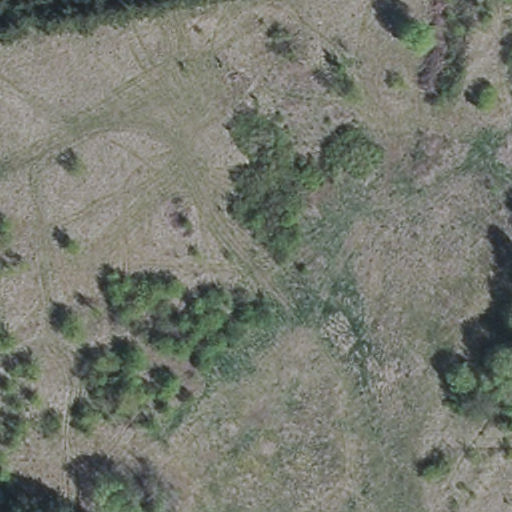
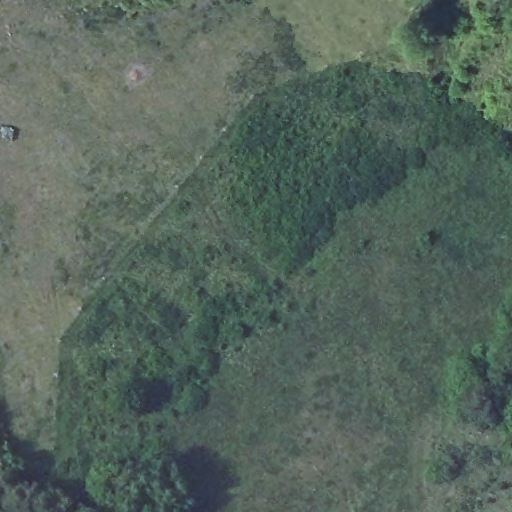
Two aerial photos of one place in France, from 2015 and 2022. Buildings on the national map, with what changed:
[]

